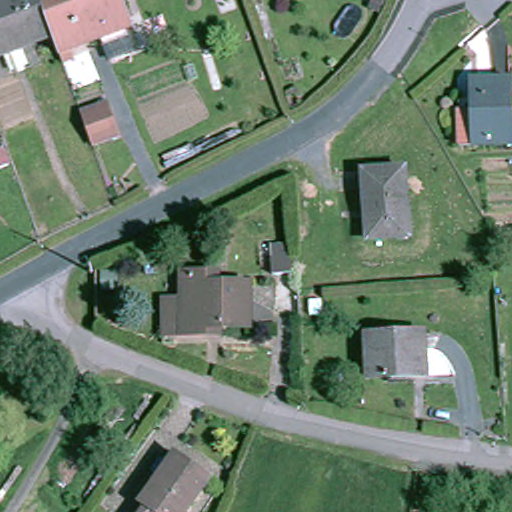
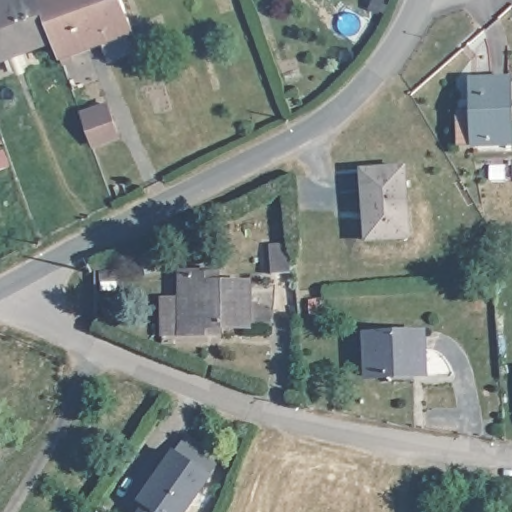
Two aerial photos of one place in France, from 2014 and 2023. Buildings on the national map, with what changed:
unchanged [(0,54),(0,0),(48,0),(59,32),(0,54)]
unchanged [(113,53),(104,32),(71,45),(74,52),(68,54),(59,32),(48,0),(128,0),(136,20),(129,23),(137,43),(113,53)]
unchanged [(462,109),(477,109),(475,78),(512,77),(512,141),(478,142),(463,143),(462,109)]
unchanged [(82,112),(107,103),(119,132),(93,142),(82,112)]
unchanged [(372,238),(368,170),(409,167),(413,235),(372,238)]
unchanged [(275,272),(273,244),(292,242),(294,270),(275,272)]
unchanged [(209,333),(183,333),(166,333),(164,296),(183,296),(183,272),(206,272),(223,272),(223,283),(254,282),(254,300),(276,309),(276,322),(255,324),(226,324),(226,333),(209,333)]
unchanged [(431,372),(374,375),(371,332),(429,329),(431,372)]
unchanged [(141,494),(157,472),(174,447),(209,472),(182,512),(138,512),(148,498),(141,494)]

